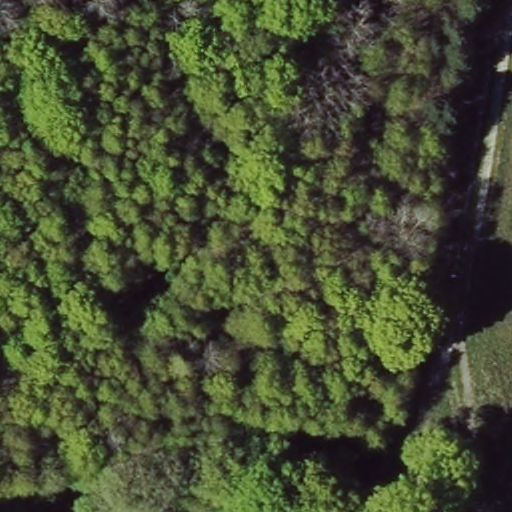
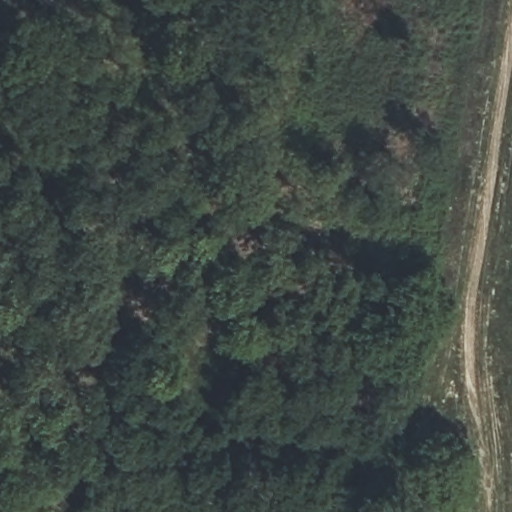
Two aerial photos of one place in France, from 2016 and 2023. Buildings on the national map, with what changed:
[]

